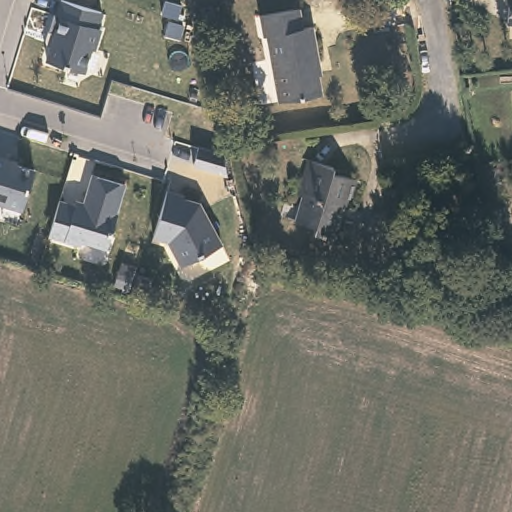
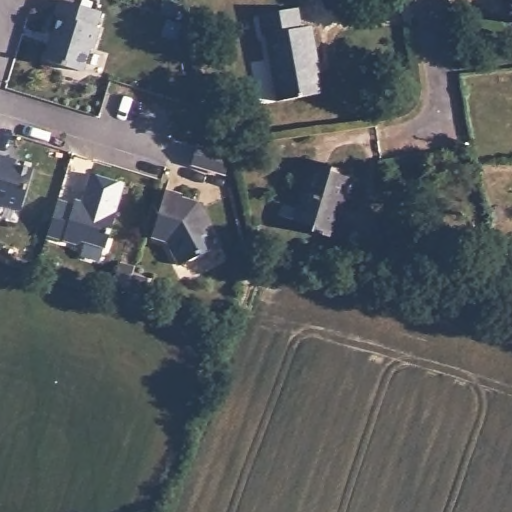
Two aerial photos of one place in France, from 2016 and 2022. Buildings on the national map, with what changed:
unchanged [(60,16),(55,14),(59,0),(63,0),(103,12),(94,50),(91,49),(85,70),(46,60),(60,16)]
unchanged [(507,27),(510,0),(512,0),(512,28),(507,27)]
unchanged [(302,29),(311,28),(318,63),(311,64),(313,73),(316,75),(320,96),(278,103),(266,36),(264,37),(259,14),(299,8),(302,29)]
unchanged [(21,212),(0,205),(0,157),(35,167),(21,212)]
unchanged [(331,169),(330,174),(351,180),(343,207),(339,206),(335,221),(338,222),(333,239),(312,232),(314,227),(293,220),(301,197),(298,196),(309,161),(331,169)]
unchanged [(124,185),(106,250),(47,236),(59,200),(82,204),(91,175),(124,185)]
unchanged [(200,201),(222,244),(179,264),(166,242),(151,237),(165,191),(200,201)]

